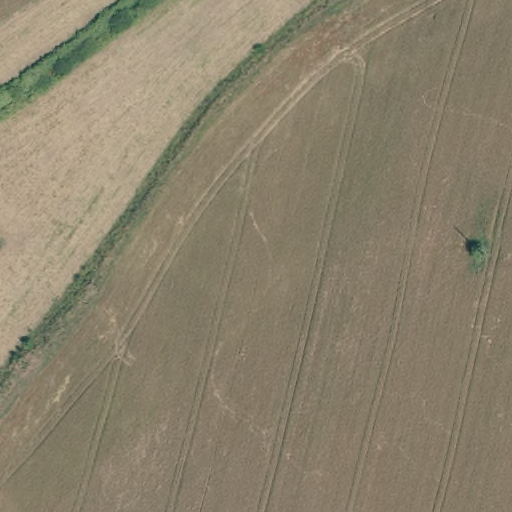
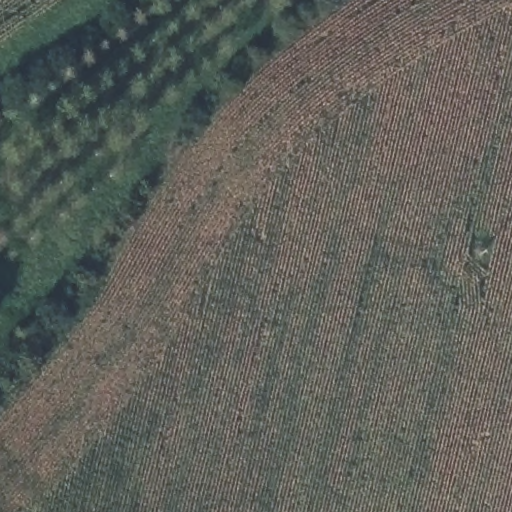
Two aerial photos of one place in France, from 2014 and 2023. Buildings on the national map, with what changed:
[]

